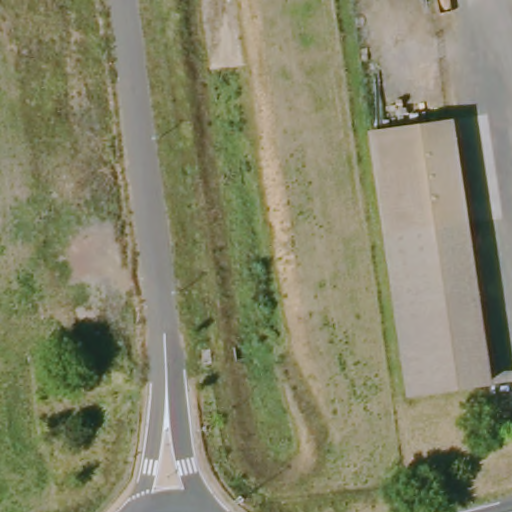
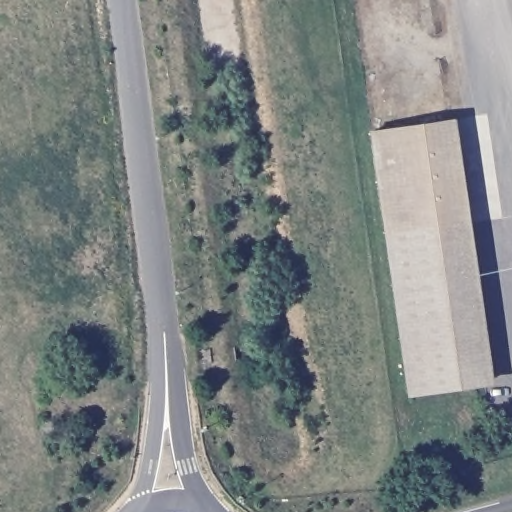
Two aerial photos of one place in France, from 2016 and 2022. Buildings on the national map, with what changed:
unchanged [(371,135),(445,124),(483,387),(410,397),(371,135)]
unchanged [(48,400),(79,394),(82,409),(51,414),(48,400)]
unchanged [(460,469),(463,482),(447,485),(444,473),(460,469)]

